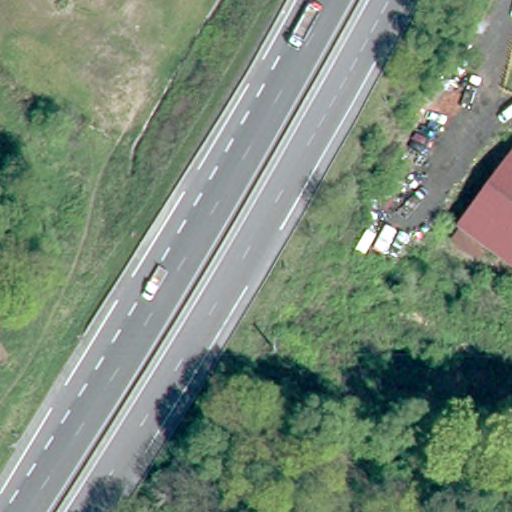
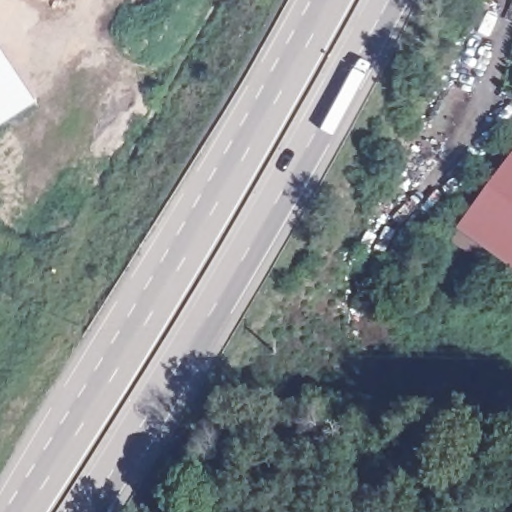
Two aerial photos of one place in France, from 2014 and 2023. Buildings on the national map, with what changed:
new [(33,103),(0,125),(0,54),(33,103)]
unchanged [(485,242),(477,253),(451,234),(512,146),(512,262),(504,256),(485,242)]

